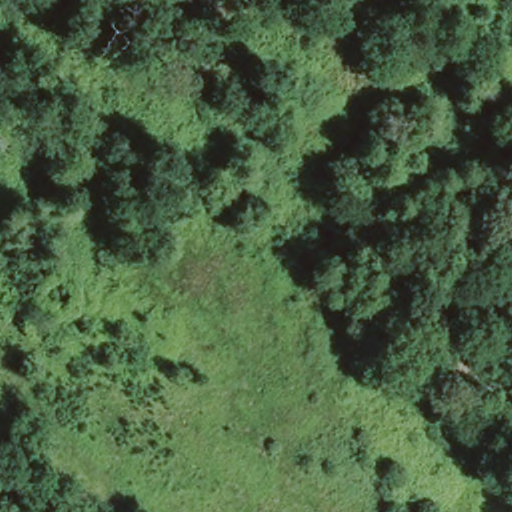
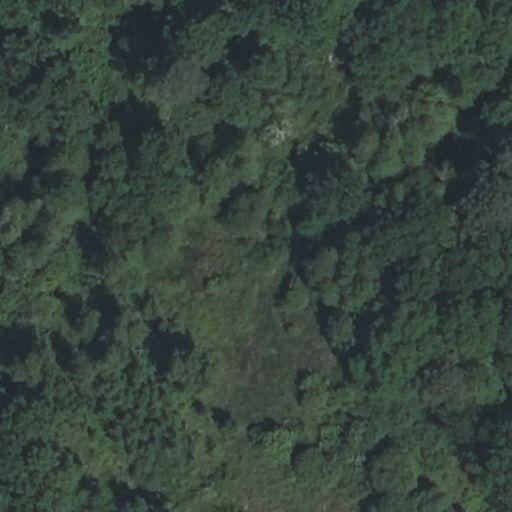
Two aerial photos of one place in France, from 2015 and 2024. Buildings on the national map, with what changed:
unchanged [(30,295),(52,273),(72,296),(52,319),(30,295)]

